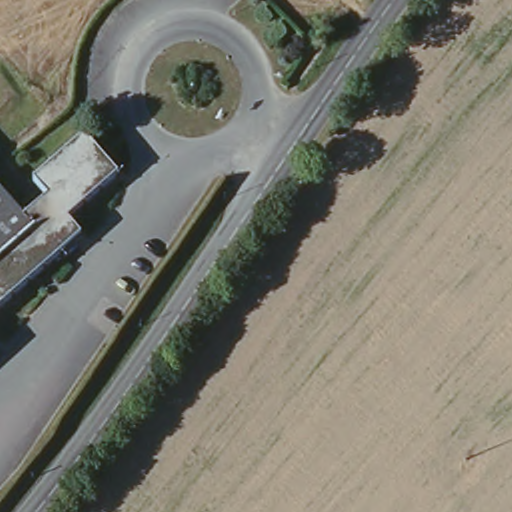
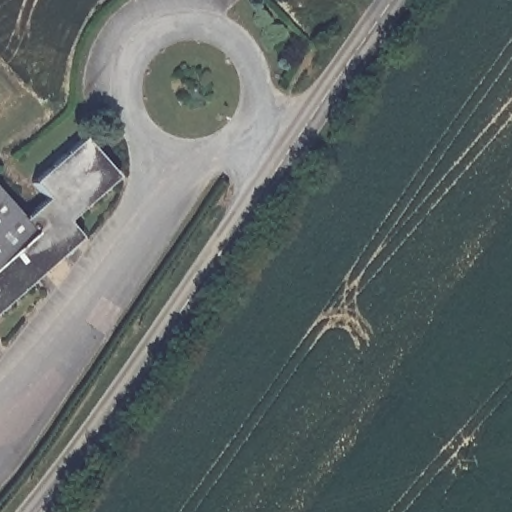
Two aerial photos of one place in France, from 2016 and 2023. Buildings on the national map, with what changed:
unchanged [(52,197),(38,179),(87,135),(122,176),(73,222),(82,237),(0,311),(0,239),(26,218),(52,197)]
unchanged [(0,239),(0,188),(26,218),(0,239)]

